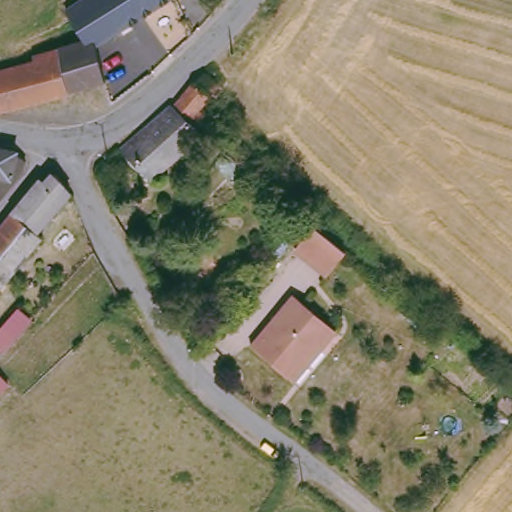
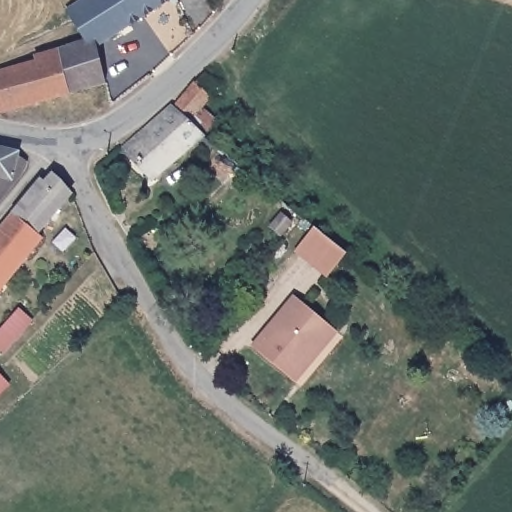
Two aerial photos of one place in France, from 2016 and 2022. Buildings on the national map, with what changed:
unchanged [(97,47),(94,33),(83,37),(63,8),(76,0),(165,0),(97,47)]
unchanged [(0,111),(0,72),(37,61),(35,56),(83,37),(94,33),(97,47),(103,83),(0,111)]
unchanged [(122,147),(172,102),(202,67),(211,76),(212,86),(207,90),(189,107),(196,116),(204,125),(153,175),(122,147)]
unchanged [(17,147),(15,150),(20,152),(24,157),(25,160),(0,193),(0,143),(17,147)]
unchanged [(37,234),(41,237),(0,288),(0,228),(39,180),(42,182),(47,177),(50,177),(54,177),(67,190),(69,193),(37,234)]
unchanged [(315,227),(330,241),(345,253),(327,276),(295,251),(315,227)]
unchanged [(288,374),(251,344),(292,294),(332,327),(319,344),(292,377),(288,374)]
unchanged [(5,346),(0,341),(0,327),(22,303),(35,315),(5,346)]
unchanged [(10,380),(0,391),(0,370),(10,380)]

